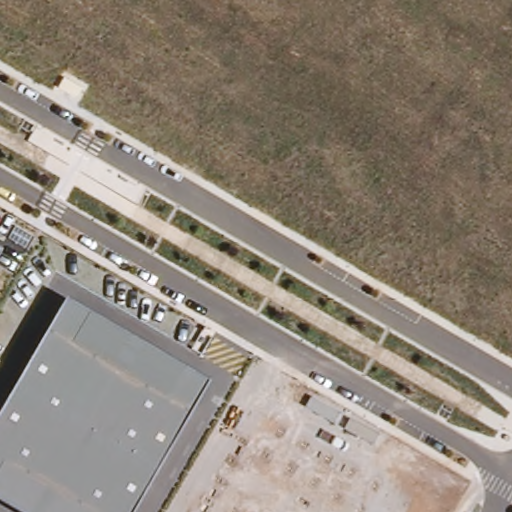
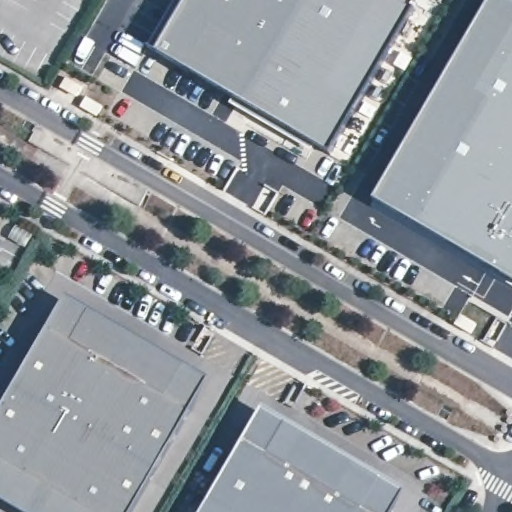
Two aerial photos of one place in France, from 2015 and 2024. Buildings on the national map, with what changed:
new [(414,4),(330,154),(155,53),(186,0),(408,0),(414,4)]
new [(490,0),(508,0),(512,2),(512,280),(374,200),(490,0)]
unchanged [(210,379),(133,512),(20,512),(0,500),(0,411),(66,298),(210,379)]
new [(395,481),(377,512),(376,512),(354,499),(367,475),(271,419),(257,443),(233,429),(251,397),(395,481)]
unchanged [(257,443),(271,419),(367,475),(354,499),(376,512),(237,512),(198,489),(233,429),(257,443)]
new [(237,512),(185,512),(198,489),(237,512)]

